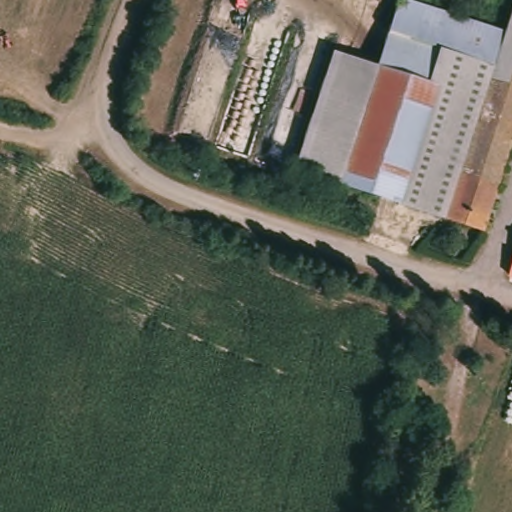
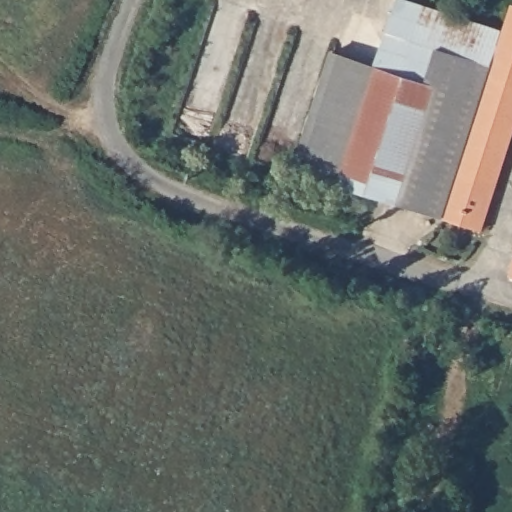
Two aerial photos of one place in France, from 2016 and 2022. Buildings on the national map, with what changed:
unchanged [(346,183),(384,64),(404,1),(509,33),(497,68),(448,53),(400,202),(346,183)]
unchanged [(512,23),(512,135),(481,227),(449,216),(497,68),(509,33),(512,23)]
unchanged [(297,167),(338,49),(384,64),(346,183),(297,167)]
unchanged [(449,216),(400,202),(448,53),(497,68),(449,216)]

